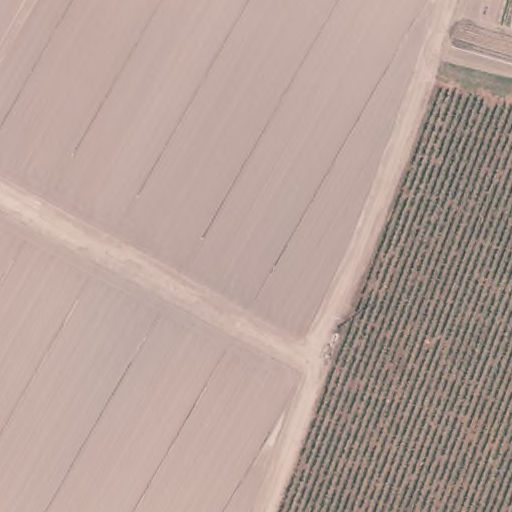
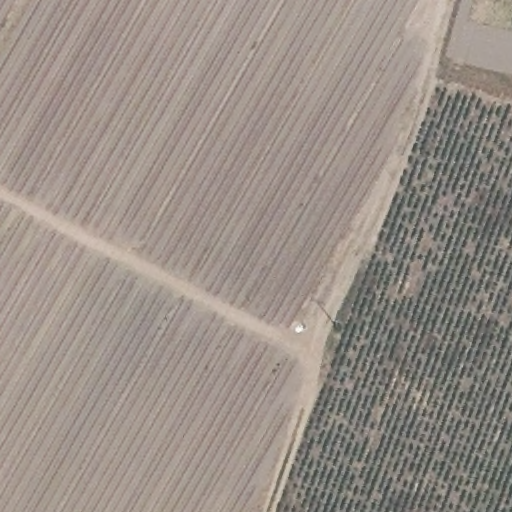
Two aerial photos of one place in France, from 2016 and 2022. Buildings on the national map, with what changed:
[]

